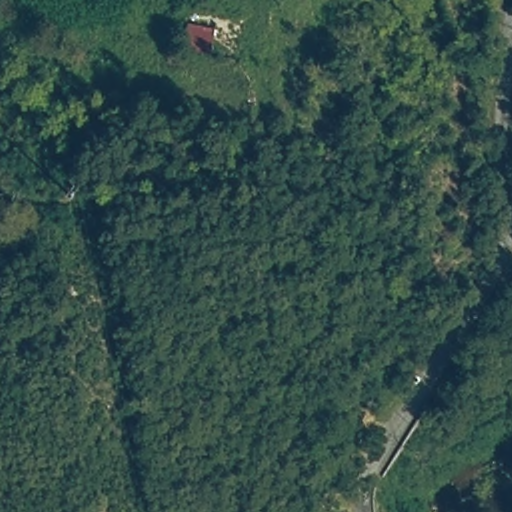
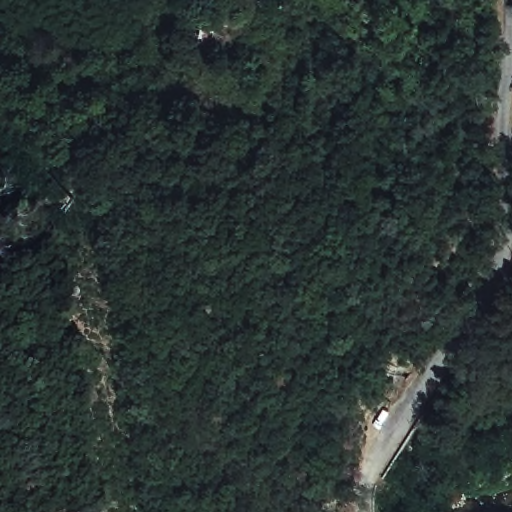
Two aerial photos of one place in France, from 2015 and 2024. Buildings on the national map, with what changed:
unchanged [(211,57),(183,51),(187,24),(215,29),(211,57)]

